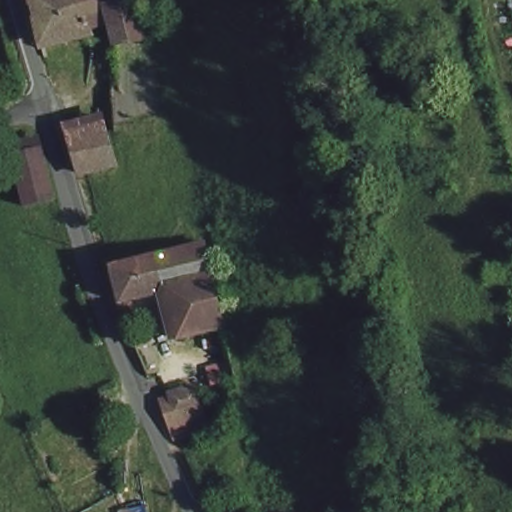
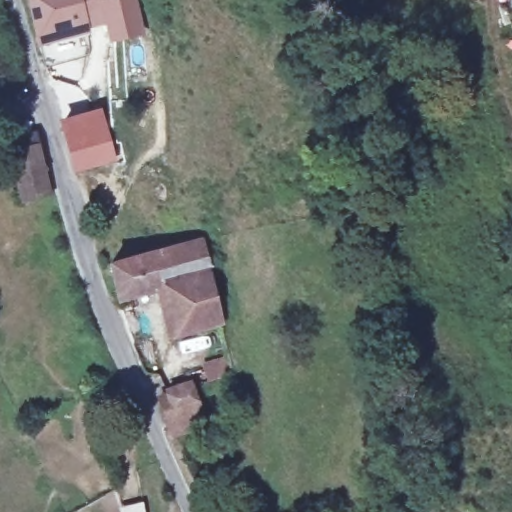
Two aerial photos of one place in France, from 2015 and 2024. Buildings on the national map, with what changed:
unchanged [(25,1),(24,0),(29,0),(25,1)]
unchanged [(109,10),(134,5),(141,37),(114,44),(110,27),(40,43),(29,0),(106,0),(109,10)]
unchanged [(99,127),(110,162),(74,174),(60,124),(95,113),(99,127)]
unchanged [(50,188),(23,198),(5,146),(34,136),(50,188)]
unchanged [(225,329),(175,338),(162,297),(121,304),(111,271),(200,249),(225,329)]
unchanged [(200,422),(171,432),(159,406),(167,403),(163,392),(185,386),(200,422)]
unchanged [(146,503),(148,512),(117,512),(117,508),(146,503)]

